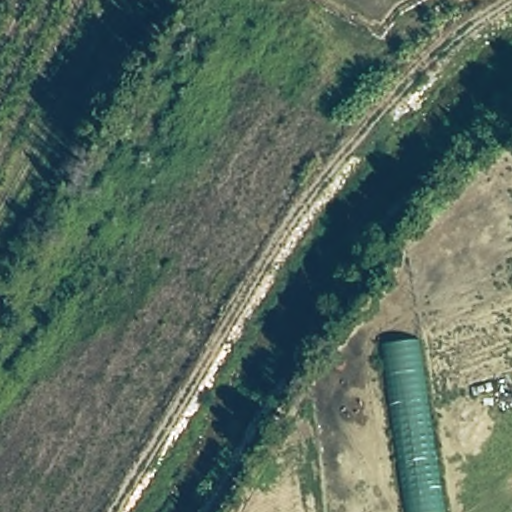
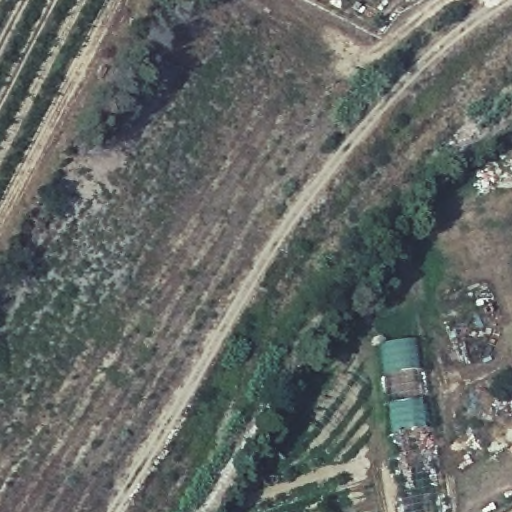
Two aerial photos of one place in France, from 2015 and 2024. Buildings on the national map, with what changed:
unchanged [(382,344),(420,339),(446,512),(407,512),(382,344)]

